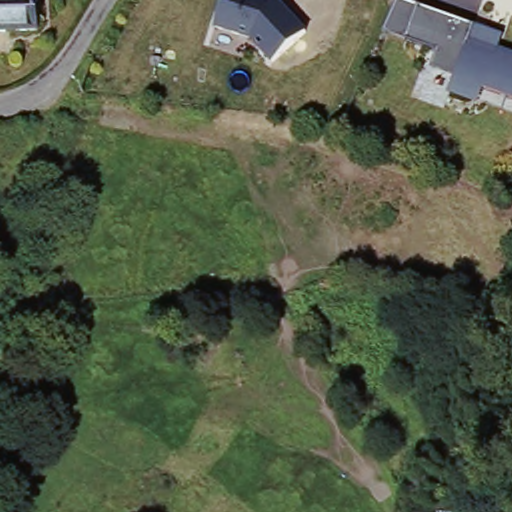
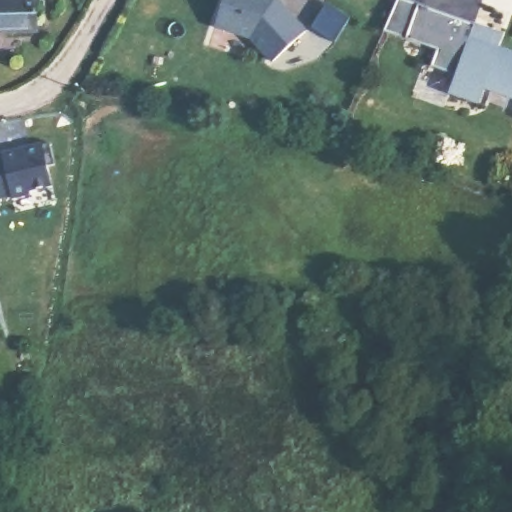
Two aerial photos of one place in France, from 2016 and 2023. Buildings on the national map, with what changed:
unchanged [(41,29),(0,30),(0,0),(40,0),(41,29)]
unchanged [(307,33),(277,60),(251,33),(220,24),(227,0),(279,0),(307,33)]
unchanged [(507,31),(503,47),(512,50),(512,105),(483,95),(479,105),(451,93),(458,74),(431,62),(438,46),(388,27),(400,0),(417,0),(507,31)]
new [(3,152),(50,140),(55,162),(48,164),(53,182),(30,187),(31,190),(14,195),(13,192),(0,196),(0,155),(3,154),(3,152)]

